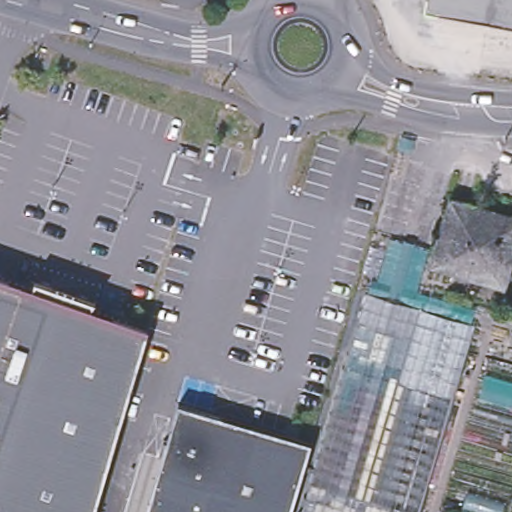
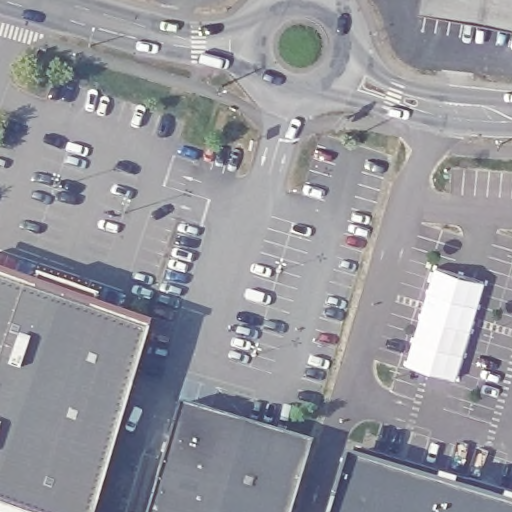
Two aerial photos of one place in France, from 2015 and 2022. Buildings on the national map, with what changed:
unchanged [(426,0),(512,0),(512,22),(425,7),(426,0)]
demolished [(434,252),(447,206),(485,217),(484,224),(512,232),(512,251),(502,282),(480,276),(482,267),(434,252)]
unchanged [(93,512),(4,512),(0,511),(0,279),(30,290),(34,278),(40,280),(46,282),(92,298),(88,310),(147,330),(93,512)]
demolished [(364,295),(475,326),(464,362),(409,347),(355,331),(364,295)]
demolished [(359,512),(301,512),(355,331),(409,347),(359,512)]
demolished [(464,362),(419,512),(359,512),(409,347),(464,362)]
unchanged [(176,406),(220,419),(217,433),(307,460),(291,512),(146,512),(176,406)]
unchanged [(307,460),(217,433),(220,419),(310,445),(307,460)]
new [(345,459),(512,509),(512,512),(328,512),(345,459)]

